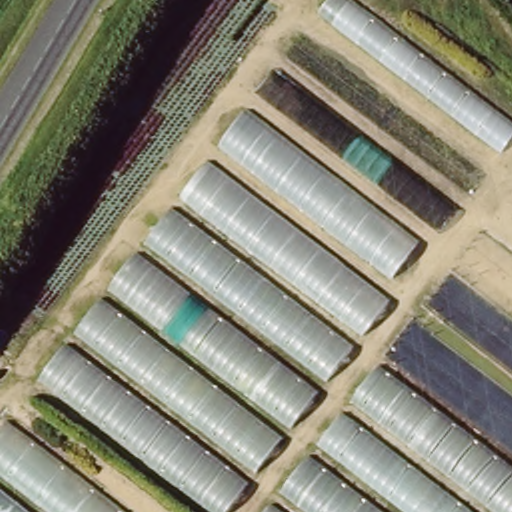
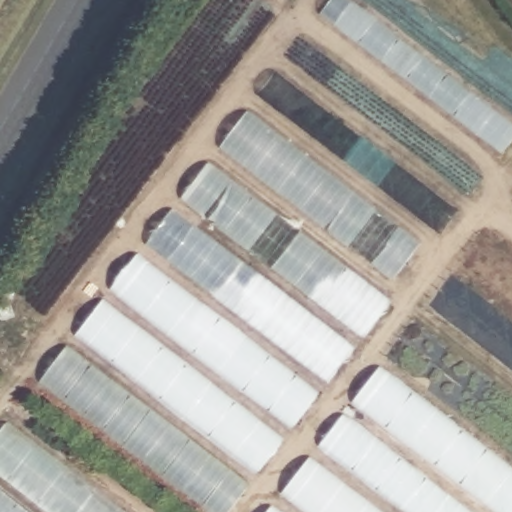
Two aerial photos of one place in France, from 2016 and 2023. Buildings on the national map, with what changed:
unchanged [(299,33),(485,169),(440,233),(251,96),(299,33)]
unchanged [(417,244),(393,275),(222,141),(243,106),(417,244)]
unchanged [(385,298),(362,331),(178,195),(205,160),(385,298)]
unchanged [(348,346),(328,375),(147,238),(170,208),(348,346)]
unchanged [(477,234),(512,260),(512,453),(385,356),(477,234)]
unchanged [(312,391),(288,424),(112,287),(137,254),(312,391)]
unchanged [(275,437),(257,468),(77,330),(97,299),(275,437)]
unchanged [(242,479),(219,511),(42,378),(66,345),(242,479)]
unchanged [(512,472),(512,507),(508,512),(504,512),(355,399),(375,367),(512,472)]
unchanged [(469,512),(414,512),(320,442),(342,413),(469,512)]
unchanged [(115,512),(0,512),(0,427),(1,426),(115,512)]
unchanged [(380,512),(318,512),(283,485),(308,457),(380,512)]
unchanged [(282,512),(262,512),(270,503),(282,512)]

